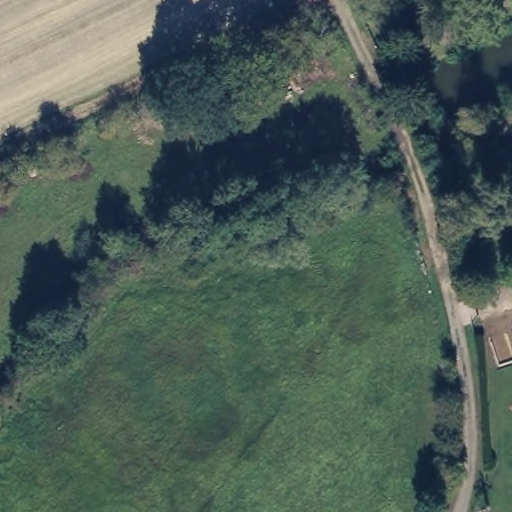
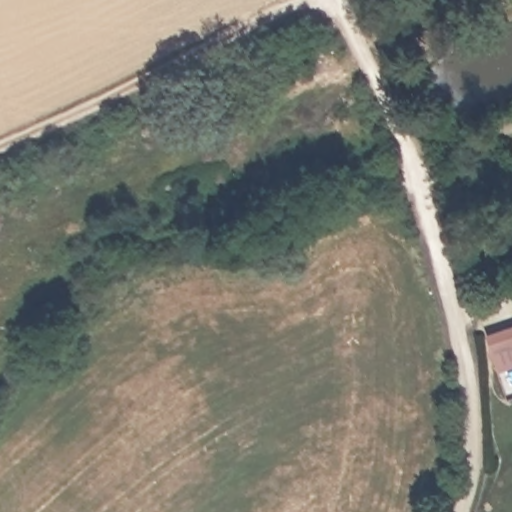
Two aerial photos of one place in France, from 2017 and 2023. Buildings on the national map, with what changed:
new [(485,335),(512,327),(512,368),(498,373),(485,335)]

